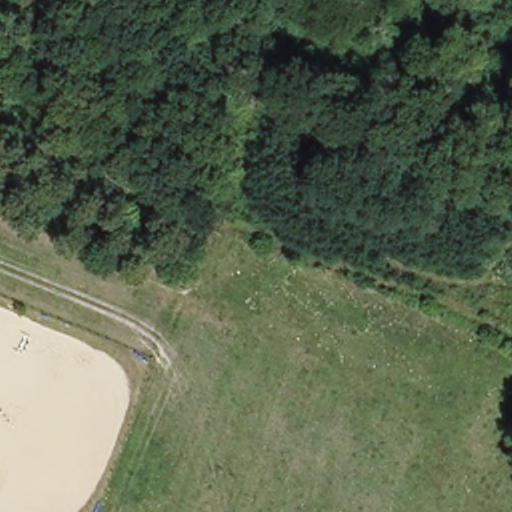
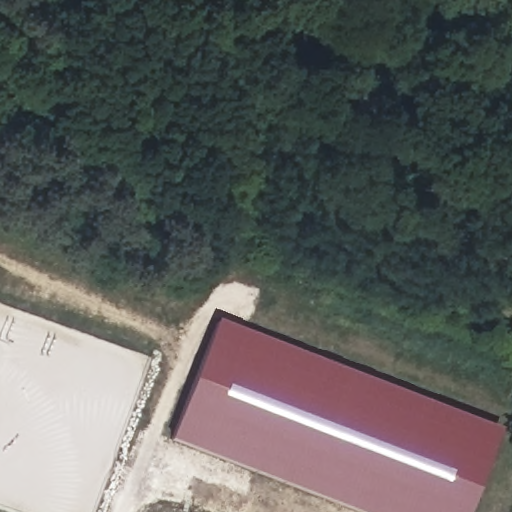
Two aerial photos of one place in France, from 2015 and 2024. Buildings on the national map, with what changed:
new [(215,320),(499,428),(468,512),(352,512),(169,442),(215,320)]

